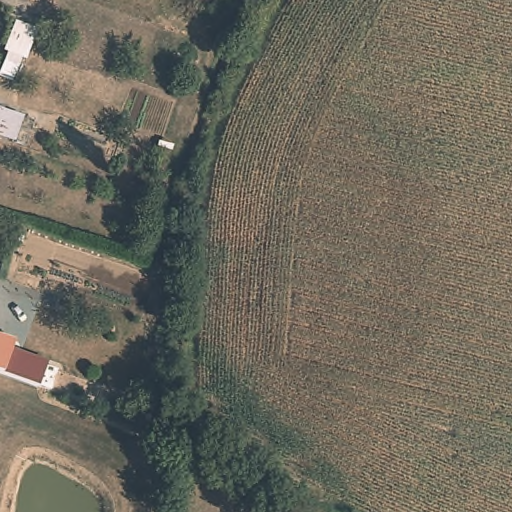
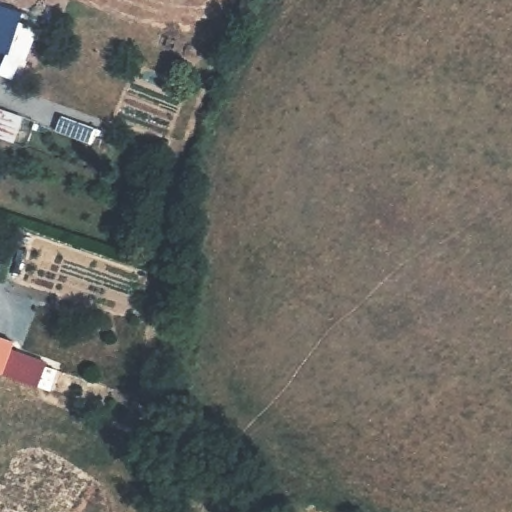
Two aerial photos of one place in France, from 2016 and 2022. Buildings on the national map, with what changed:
unchanged [(13,349),(47,362),(39,388),(0,373),(0,337),(16,342),(13,349)]

